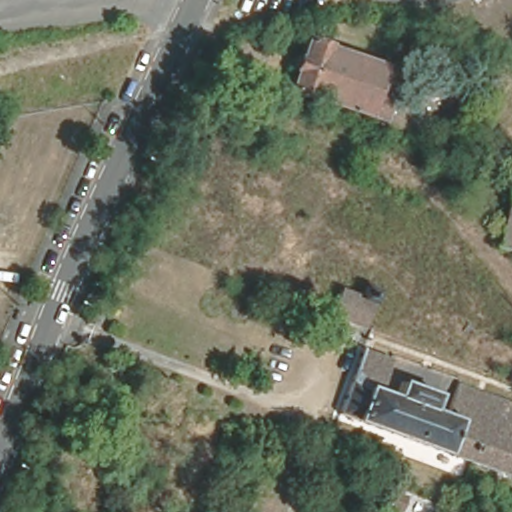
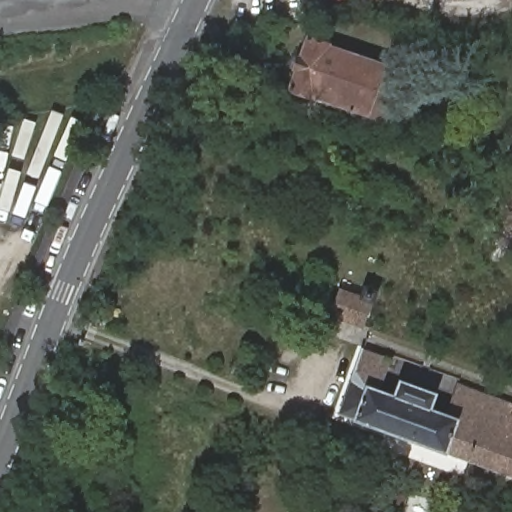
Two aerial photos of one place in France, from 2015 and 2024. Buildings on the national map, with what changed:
unchanged [(401,72),(385,119),(314,95),(312,99),(290,91),(308,40),(329,46),(329,49),(401,72)]
unchanged [(512,258),(492,252),(509,185),(512,186),(512,258)]
unchanged [(339,293),(373,305),(364,334),(331,322),(339,293)]
unchanged [(364,351),(410,367),(404,384),(442,398),(449,380),(512,405),(512,480),(340,417),(364,351)]
unchanged [(401,512),(393,512),(384,510),(388,491),(404,495),(401,512)]
unchanged [(483,512),(469,512),(471,507),(483,512)]

